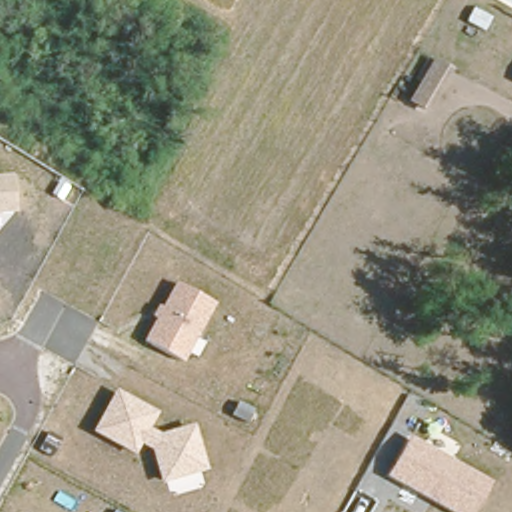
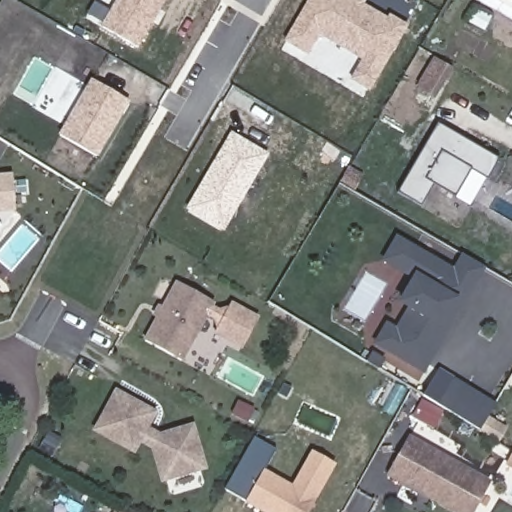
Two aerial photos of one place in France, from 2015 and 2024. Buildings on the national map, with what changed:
new [(137,50),(99,27),(115,0),(166,0),(137,50)]
new [(386,19),(389,15),(408,26),(370,95),(350,81),(361,62),(318,37),(307,57),(282,42),(307,0),(354,0),(386,19)]
unchanged [(427,111),(409,100),(421,81),(415,77),(429,54),(452,67),(427,111)]
new [(91,80),(130,102),(97,157),(60,135),(91,80)]
new [(437,125),(497,160),(487,180),(470,169),(454,198),(432,185),(420,206),(398,192),(437,125)]
new [(269,155),(224,234),(184,210),(230,132),(269,155)]
unchanged [(0,213),(0,174),(12,174),(16,211),(0,213)]
new [(452,268),(461,254),(485,267),(423,373),(373,344),(385,322),(396,328),(409,311),(396,305),(411,275),(381,261),(395,236),(452,268)]
unchanged [(155,318),(151,315),(157,302),(162,305),(175,281),(216,302),(214,307),(210,315),(185,362),(144,339),(155,318)]
new [(214,307),(219,311),(227,309),(231,302),(258,318),(242,350),(214,333),(215,330),(215,319),(210,315),(214,307)]
new [(452,377),(493,404),(478,430),(437,405),(452,377)]
unchanged [(158,411),(150,427),(160,432),(194,424),(207,468),(162,483),(152,450),(141,444),(135,455),(91,431),(115,389),(158,411)]
unchanged [(453,512),(387,476),(409,435),(491,479),(474,512),(453,512)]
new [(263,512),(225,490),(255,440),(274,451),(263,470),(290,486),(310,451),(335,466),(315,500),(309,512),(263,512)]

